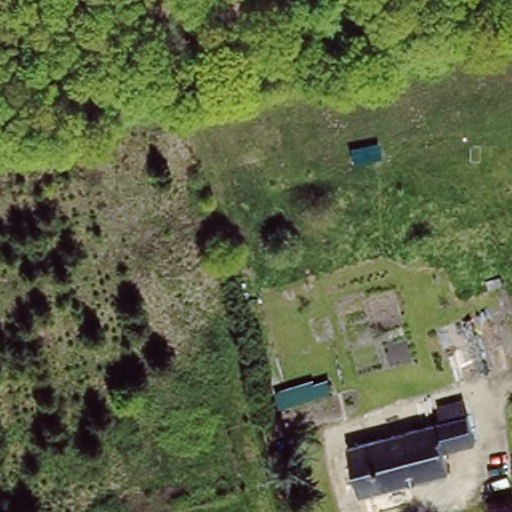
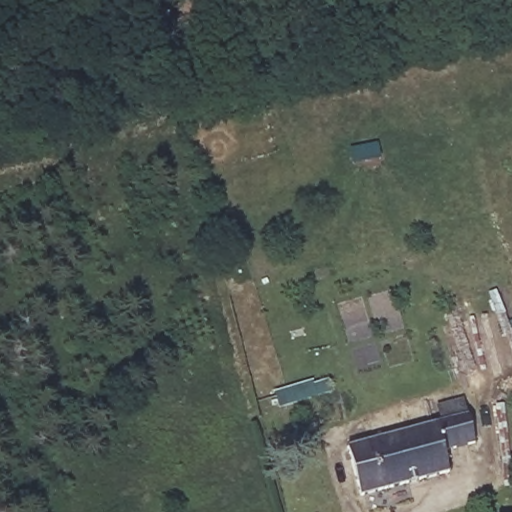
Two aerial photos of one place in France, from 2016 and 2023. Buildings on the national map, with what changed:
unchanged [(465,415),(472,441),(442,452),(445,472),(362,496),(348,448),(465,415)]
unchanged [(488,496),(492,512),(455,512),(454,505),(488,496)]

